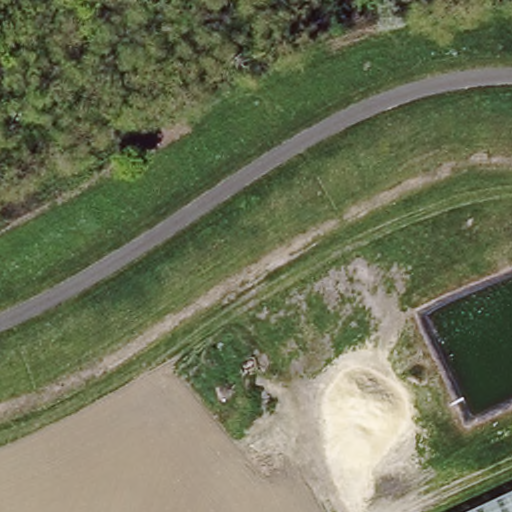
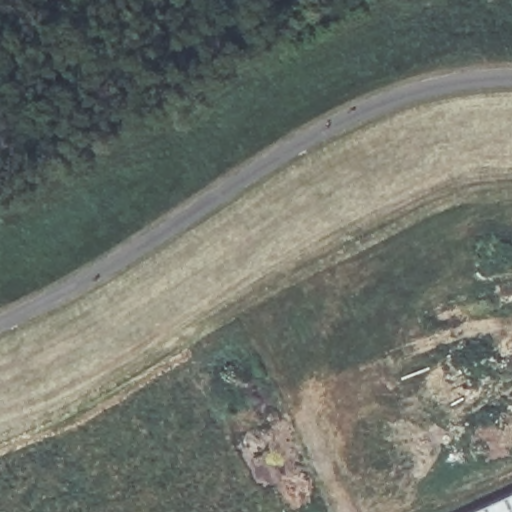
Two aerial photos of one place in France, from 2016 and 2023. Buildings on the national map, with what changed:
unchanged [(512,489),(512,512),(462,512),(512,489)]

